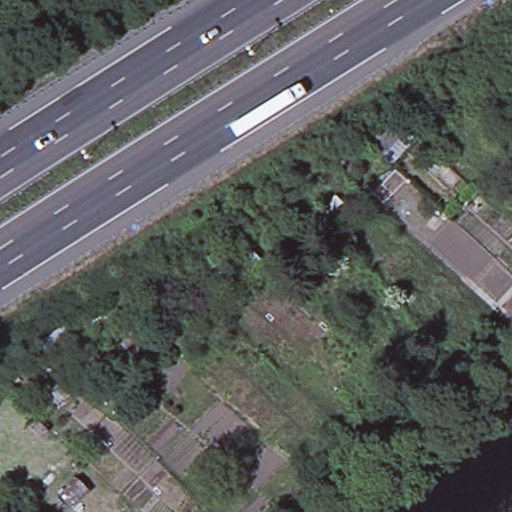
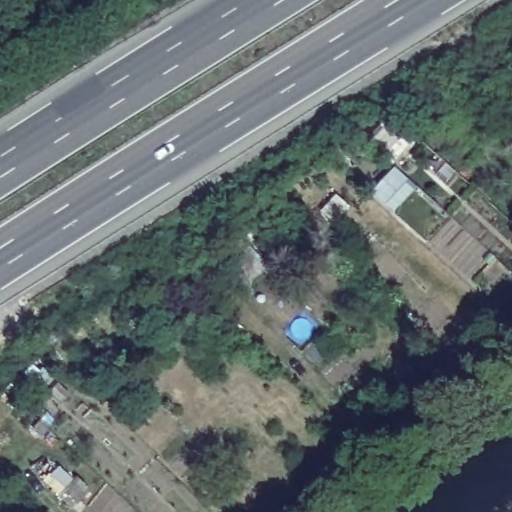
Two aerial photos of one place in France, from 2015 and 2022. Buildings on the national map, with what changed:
unchanged [(253,243),(268,262),(232,290),(220,273),(253,243)]
unchanged [(92,493),(74,512),(68,512),(55,502),(75,481),(92,493)]

